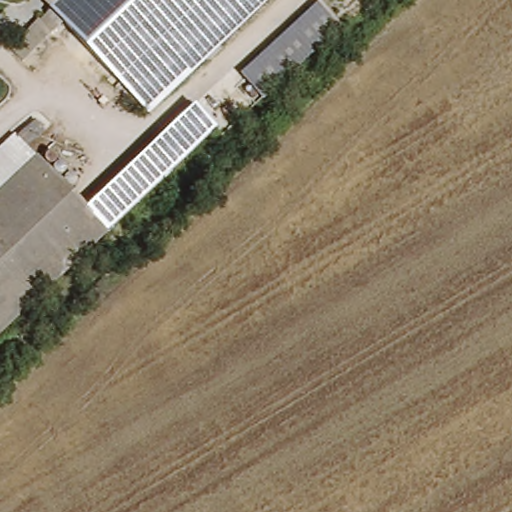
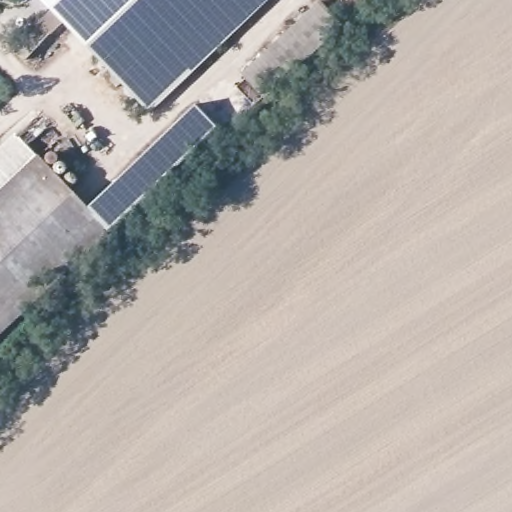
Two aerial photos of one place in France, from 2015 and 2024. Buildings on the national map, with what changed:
unchanged [(69,25),(43,50),(25,30),(48,9),(57,0),(272,0),(150,113),(69,25)]
unchanged [(57,0),(48,9),(39,0),(57,0)]
unchanged [(319,1),(345,25),(261,99),(241,75),(319,1)]
unchanged [(186,113),(209,137),(0,331),(0,146),(15,132),(84,206),(186,113)]

